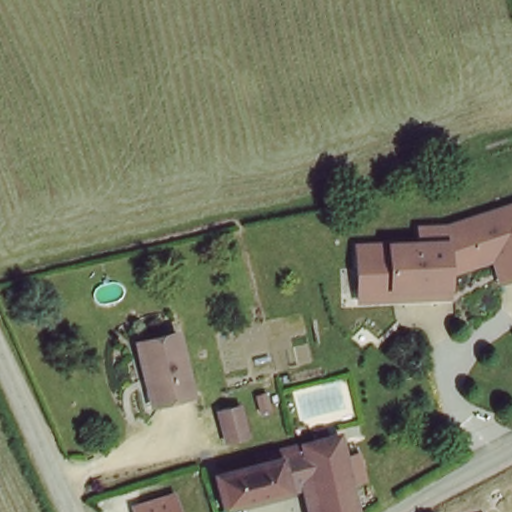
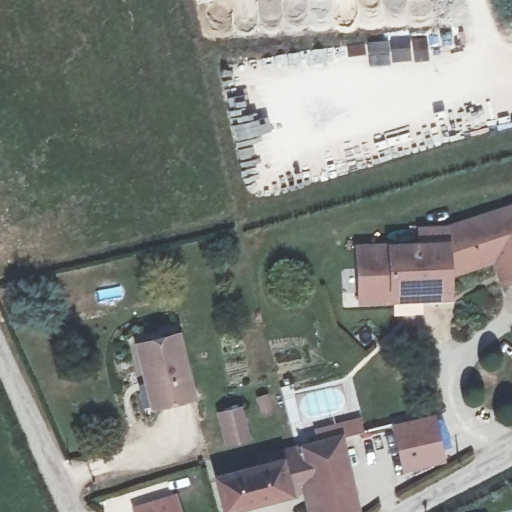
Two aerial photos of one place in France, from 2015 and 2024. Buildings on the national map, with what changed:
unchanged [(498,287),(492,262),(449,270),(452,300),(353,303),(351,240),(416,237),(415,226),(512,200),(512,281),(498,287)]
unchanged [(138,347),(179,338),(193,402),(156,410),(153,385),(146,386),(138,347)]
unchanged [(226,416),(251,411),(256,439),(233,444),(226,416)]
new [(402,470),(391,423),(434,413),(445,461),(402,470)]
unchanged [(240,512),(224,512),(216,480),(281,463),(293,450),(344,437),(361,512),(320,512),(316,495),(240,512)]
unchanged [(181,512),(175,512),(181,510),(181,512)]

